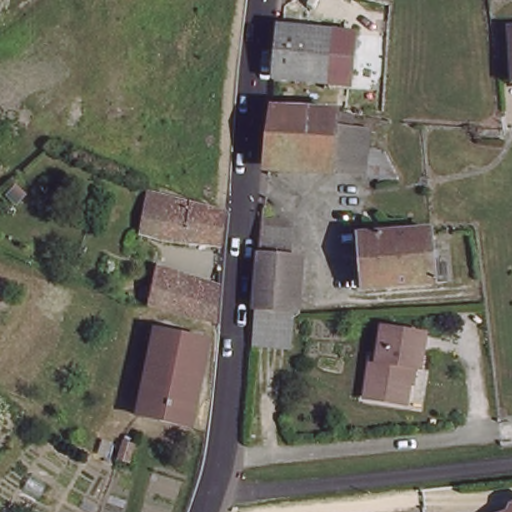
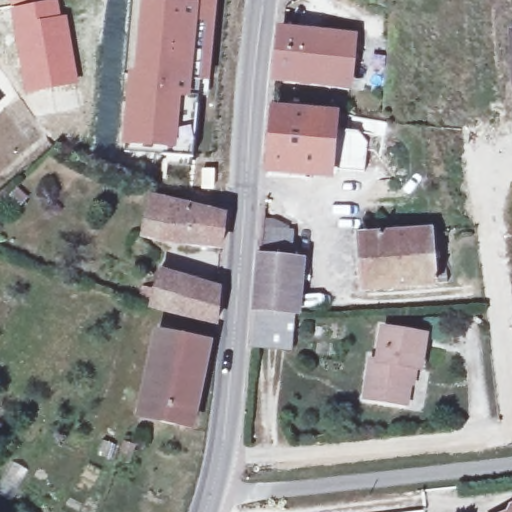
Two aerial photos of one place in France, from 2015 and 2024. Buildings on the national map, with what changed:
new [(8,6),(8,0),(35,0),(35,2),(8,6)]
new [(48,0),(58,0),(62,15),(67,14),(79,84),(24,94),(8,6),(35,2),(48,0)]
new [(133,62),(139,0),(217,0),(208,83),(196,82),(195,98),(197,99),(193,154),(120,146),(127,89),(133,62)]
unchanged [(358,105),(343,103),(345,80),(273,73),(280,30),(354,37),(352,80),(359,82),(358,105)]
unchanged [(512,50),(511,47),(512,47),(512,50)]
unchanged [(408,99),(403,124),(392,122),(397,96),(408,99)]
unchanged [(334,186),(265,181),(269,110),(340,112),(334,186)]
unchanged [(219,204),(216,235),(158,229),(157,240),(136,240),(144,190),(219,204)]
unchanged [(431,260),(433,284),(371,290),(366,238),(428,231),(431,260)]
unchanged [(283,257),(281,285),(291,286),(289,323),(289,336),(285,356),(248,353),(249,335),(256,255),(283,257)]
unchanged [(152,290),(155,274),(177,279),(177,284),(212,292),(212,294),(210,322),(137,304),(142,289),(152,290)]
unchanged [(421,330),(416,364),(407,363),(401,399),(360,392),(366,355),(373,356),(378,323),(421,330)]
unchanged [(205,347),(190,433),(132,416),(157,335),(205,347)]

